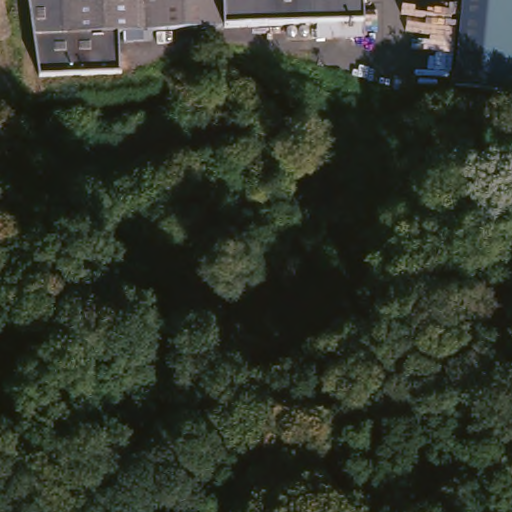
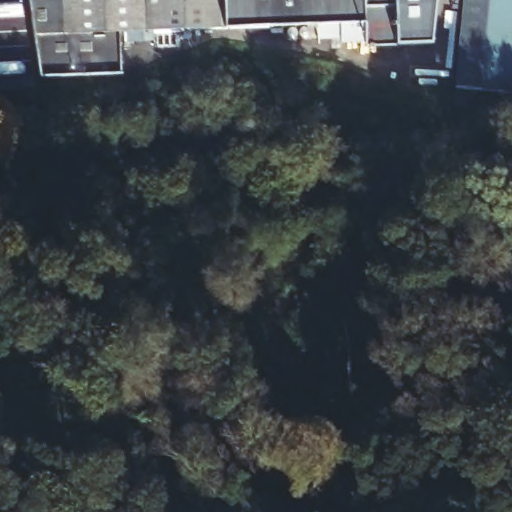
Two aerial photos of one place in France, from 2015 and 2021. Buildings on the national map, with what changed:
unchanged [(370,38),(339,38),(322,38),(322,23),(156,23),(156,33),(128,33),(128,23),(123,23),(123,66),(39,66),(34,15),(32,0),(370,0),(370,38)]
new [(430,45),(395,47),(394,40),(366,47),(366,42),(341,44),(341,38),(370,38),(370,0),(434,0),(430,45)]
unchanged [(489,84),(458,81),(465,0),(498,0),(489,84)]
unchanged [(489,84),(498,0),(512,0),(512,86),(489,84)]

